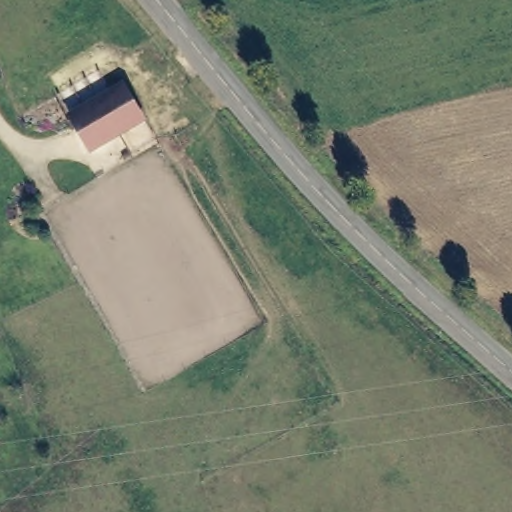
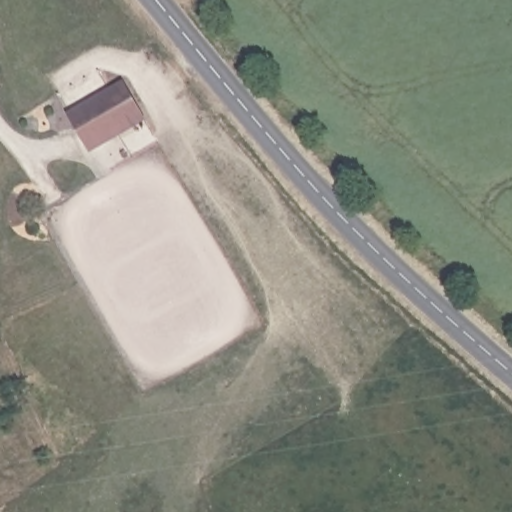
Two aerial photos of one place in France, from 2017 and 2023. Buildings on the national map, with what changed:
unchanged [(123,81),(143,119),(89,150),(69,114),(123,81)]

